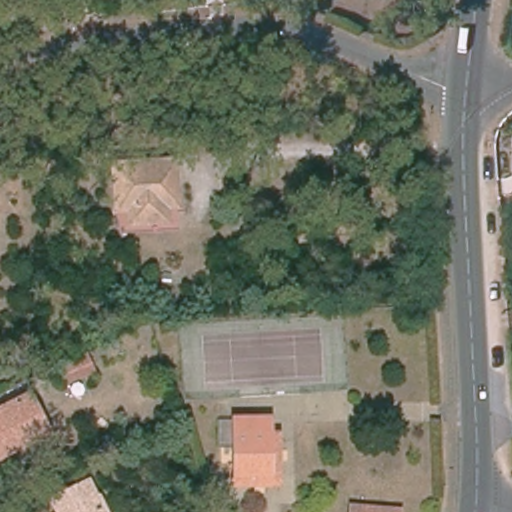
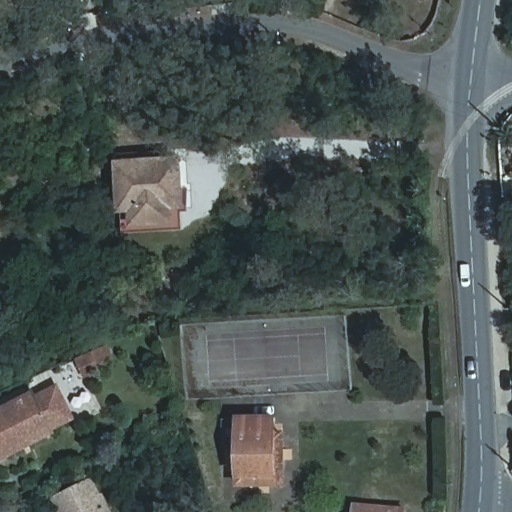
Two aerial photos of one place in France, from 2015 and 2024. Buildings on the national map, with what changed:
unchanged [(49,27),(43,0),(73,0),(79,20),(52,27),(49,27)]
unchanged [(123,215),(120,168),(120,158),(160,156),(160,160),(181,159),(181,165),(185,210),(186,225),(172,225),(141,227),(124,227),(123,215)]
unchanged [(25,443),(0,454),(0,408),(36,391),(47,418),(53,430),(25,443)]
unchanged [(242,482),(241,417),(278,415),(278,431),(286,431),(286,481),(258,482),(242,482)]
unchanged [(110,512),(62,512),(55,498),(94,478),(110,512)]
unchanged [(407,509),(407,512),(348,512),(350,503),(407,509)]

